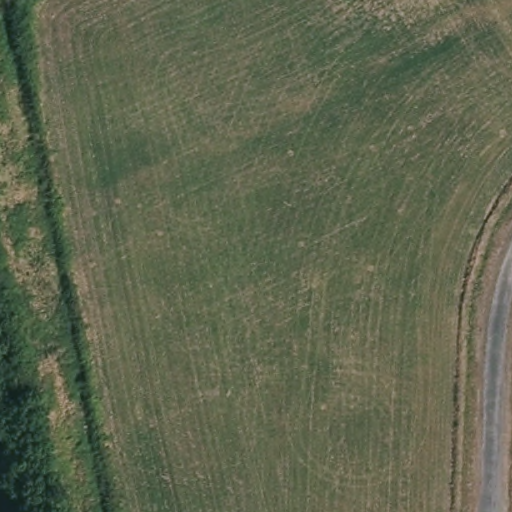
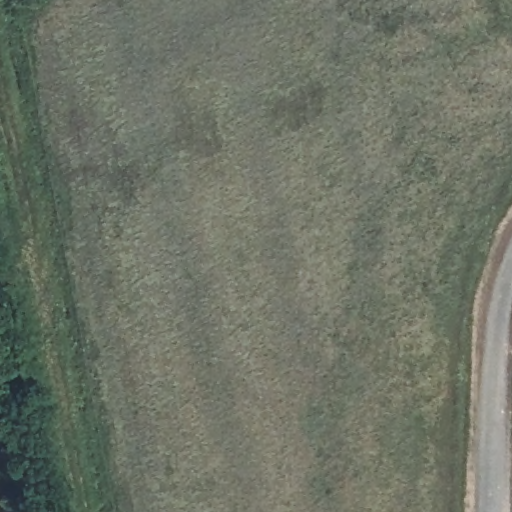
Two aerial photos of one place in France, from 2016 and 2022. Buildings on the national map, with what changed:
[]

